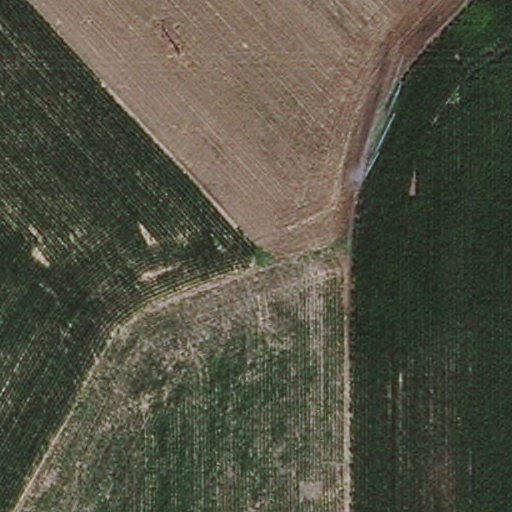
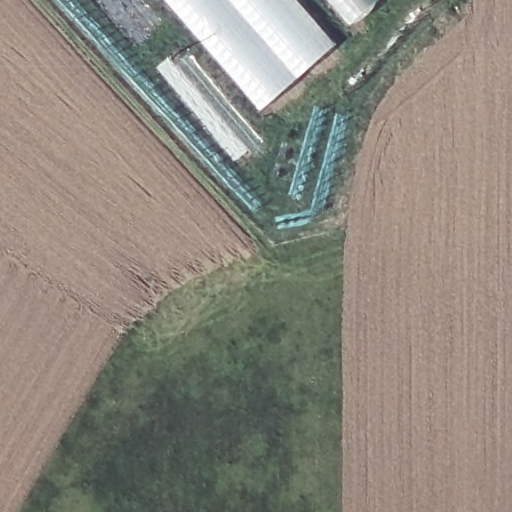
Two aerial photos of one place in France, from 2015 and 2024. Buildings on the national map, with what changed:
new [(260,110),(196,37),(164,0),(299,0),(337,42),(260,110)]
new [(343,12),(333,0),(363,0),(350,12),(347,9),(343,12)]

